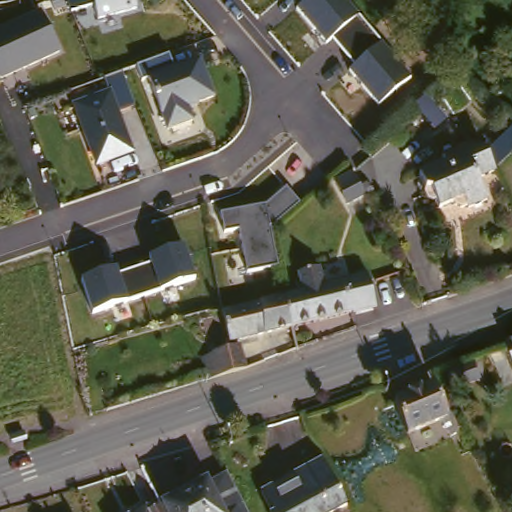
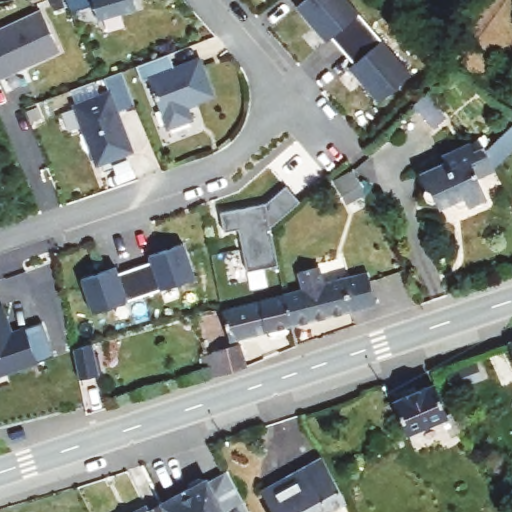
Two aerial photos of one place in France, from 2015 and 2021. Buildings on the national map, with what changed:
unchanged [(71,13),(67,0),(135,0),(138,10),(98,21),(93,6),(71,13)]
unchanged [(353,64),(332,39),(325,43),(296,10),(306,0),(347,0),(412,76),(379,104),(348,69),(353,64)]
unchanged [(0,28),(39,12),(57,51),(0,77),(0,28)]
unchanged [(166,129),(148,79),(140,81),(136,66),(169,55),(174,67),(198,58),(212,99),(189,107),(193,120),(166,129)]
unchanged [(95,165),(73,105),(107,92),(102,76),(119,71),(132,105),(117,110),(132,152),(95,165)]
unchanged [(510,118),(512,120),(512,143),(484,170),(475,151),(510,118)]
unchanged [(425,195),(419,190),(412,175),(436,164),(433,155),(460,142),(464,150),(475,151),(425,195)]
unchanged [(484,170),(468,178),(479,200),(462,210),(460,207),(455,210),(447,207),(445,205),(433,211),(427,200),(425,195),(475,151),(484,170)]
unchanged [(352,200),(347,203),(346,200),(336,180),(353,170),(366,192),(352,200)]
unchanged [(238,229),(223,230),(220,211),(268,204),(271,200),(286,186),(296,200),(300,205),(268,227),(276,266),(247,272),(238,229)]
unchanged [(81,278),(117,267),(119,275),(151,266),(148,256),(185,244),(196,279),(92,314),(81,278)]
unchanged [(340,277),(365,270),(373,306),(349,312),(349,310),(287,326),(279,293),(297,288),(295,271),(314,263),(322,281),(340,277)]
unchanged [(258,299),(279,293),(287,326),(226,342),(218,310),(258,299)]
new [(11,334),(24,330),(23,327),(41,321),(55,355),(22,367),(20,361),(0,369),(0,305),(1,304),(11,334)]
new [(94,344),(102,376),(82,381),(75,349),(94,344)]
unchanged [(236,344),(242,365),(203,379),(198,356),(212,353),(211,350),(227,346),(236,344)]
unchanged [(510,375),(499,348),(512,344),(512,374),(510,375)]
unchanged [(447,415),(409,432),(395,401),(433,385),(447,415)]
unchanged [(319,512),(266,512),(264,509),(269,506),(258,485),(303,461),(305,465),(320,457),(343,499),(319,512)]
unchanged [(162,503),(188,490),(189,484),(201,477),(205,478),(206,478),(227,467),(244,501),(250,512),(167,512),(162,503)]
unchanged [(153,501),(159,512),(131,512),(153,501)]

